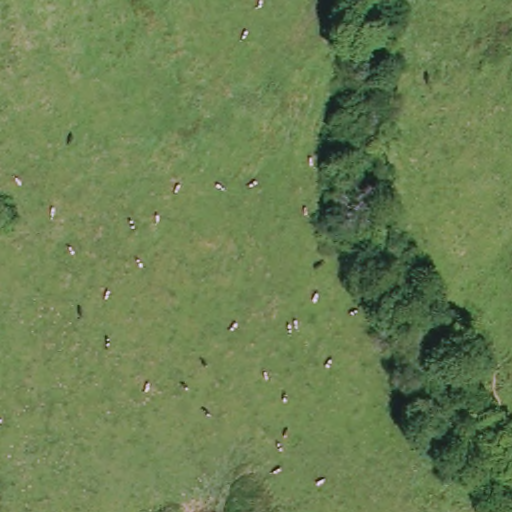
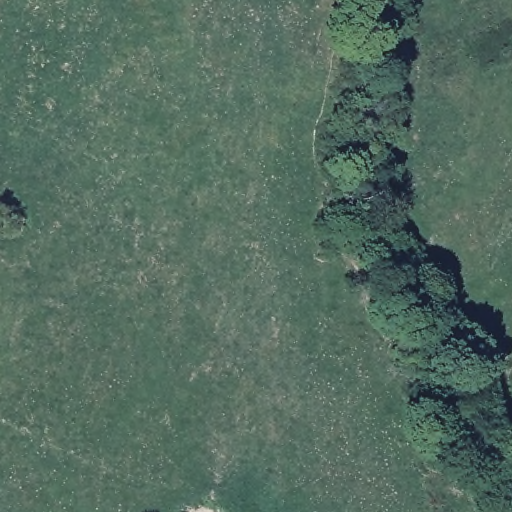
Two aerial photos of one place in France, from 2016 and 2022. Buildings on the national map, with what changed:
[]

